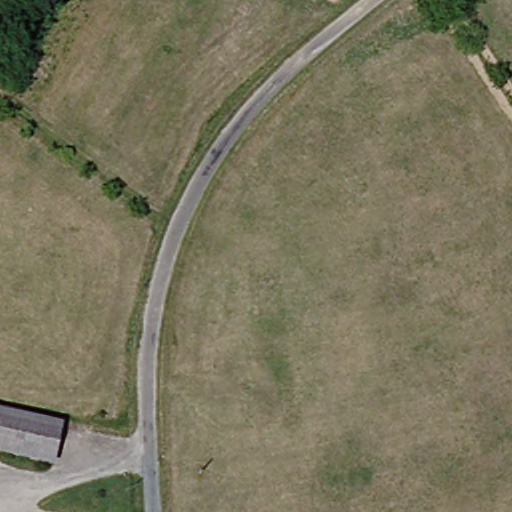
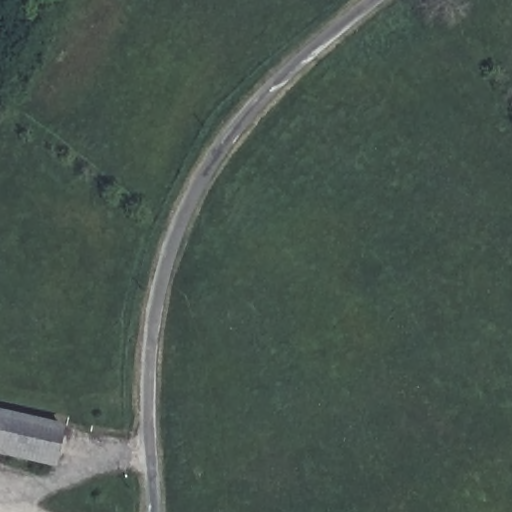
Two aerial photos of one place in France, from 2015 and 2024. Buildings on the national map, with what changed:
unchanged [(44,467),(0,457),(0,415),(54,427),(44,467)]

